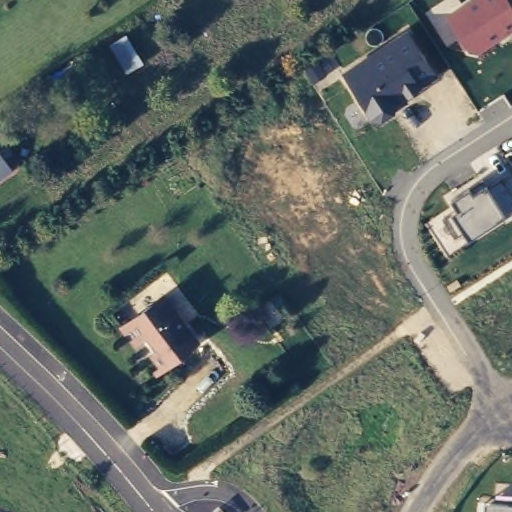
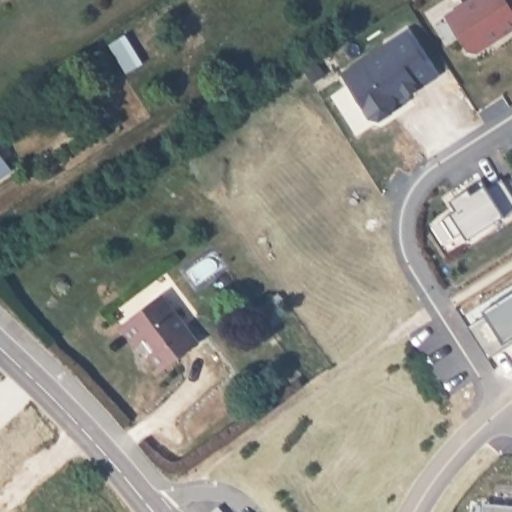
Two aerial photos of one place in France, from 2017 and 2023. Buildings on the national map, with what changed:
unchanged [(478,53),(466,50),(443,14),(465,0),(512,0),(512,32),(478,53)]
unchanged [(128,76),(110,45),(146,20),(155,35),(135,49),(145,65),(128,76)]
unchanged [(405,96),(410,105),(383,122),(370,119),(339,71),(407,30),(442,79),(405,96)]
unchanged [(0,177),(0,155),(10,169),(0,177)]
unchanged [(504,220),(502,219),(468,240),(450,214),(456,209),(450,199),(471,185),(475,192),(501,175),(512,191),(512,216),(504,220)]
new [(490,314),(487,309),(512,294),(512,342),(491,355),(472,325),(490,314)]
unchanged [(135,346),(121,327),(161,297),(195,343),(162,369),(150,353),(142,340),(135,346)]
unchanged [(158,371),(156,373),(154,371),(156,369),(158,371)]
unchanged [(512,506),(512,512),(484,512),(485,504),(512,506)]

